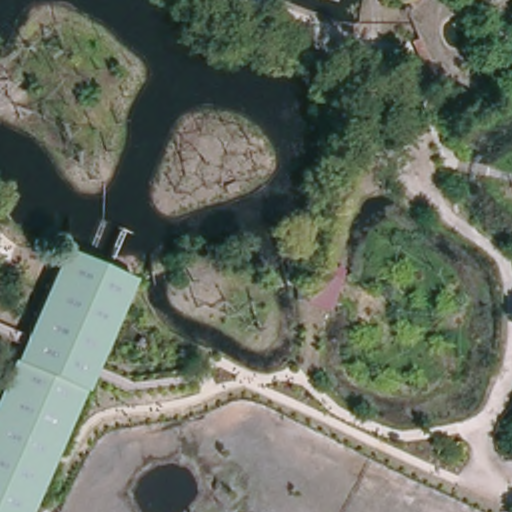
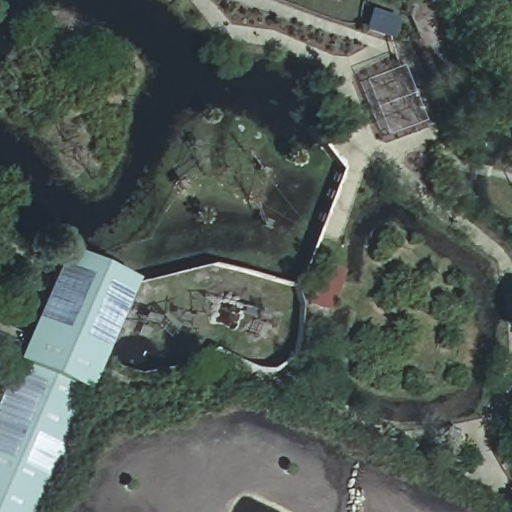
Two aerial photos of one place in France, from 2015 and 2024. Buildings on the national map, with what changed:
unchanged [(34,512),(0,512),(0,394),(7,378),(14,359),(62,249),(134,279),(86,392),(56,460),(34,512)]
unchanged [(328,312),(306,306),(319,264),(343,270),(328,312)]

